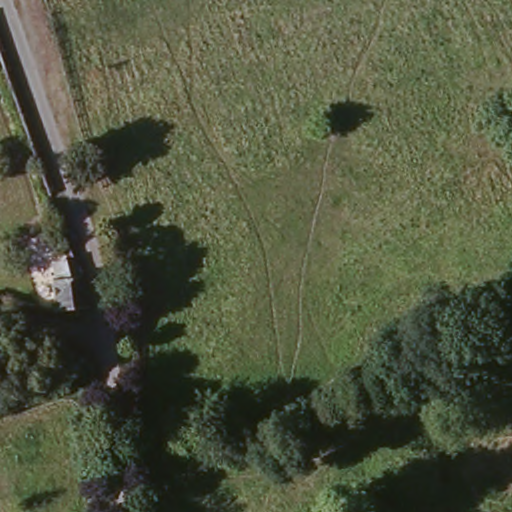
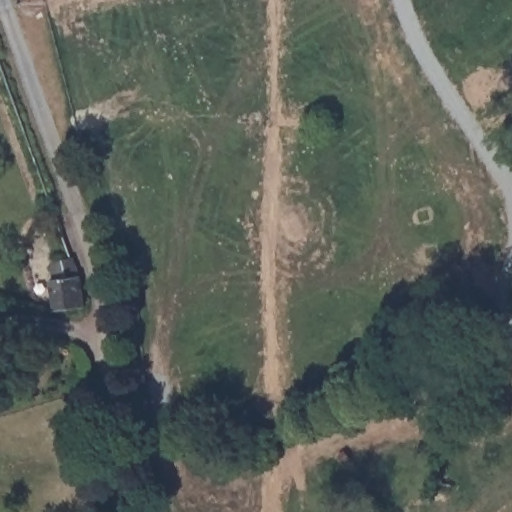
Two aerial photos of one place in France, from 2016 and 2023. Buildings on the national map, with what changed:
unchanged [(64,293),(56,293),(54,293),(53,260),(63,259),(64,248),(82,242),(87,290),(91,311),(69,312),(64,293)]

